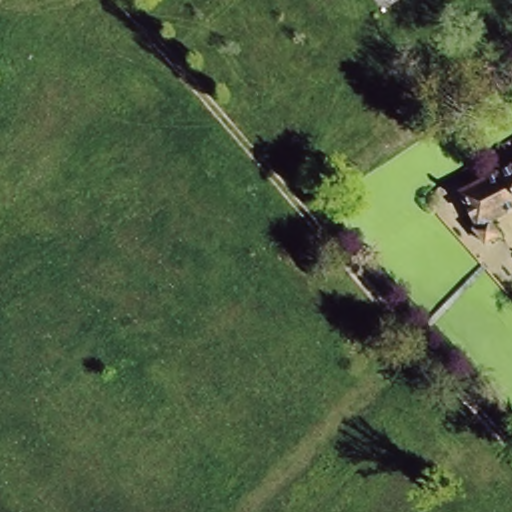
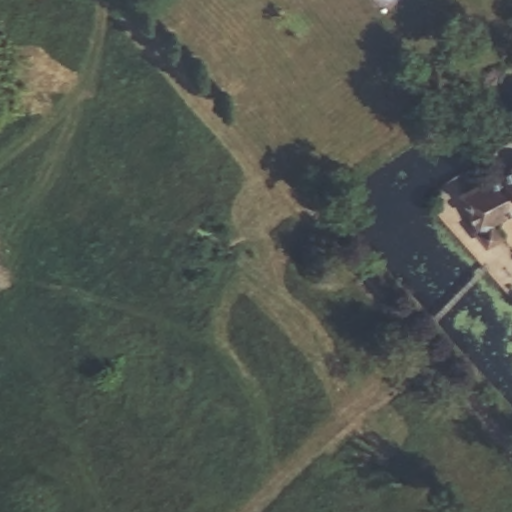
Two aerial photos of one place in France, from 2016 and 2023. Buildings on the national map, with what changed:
unchanged [(512,163),(512,210),(492,222),(499,233),(481,243),(455,197),(512,163)]

